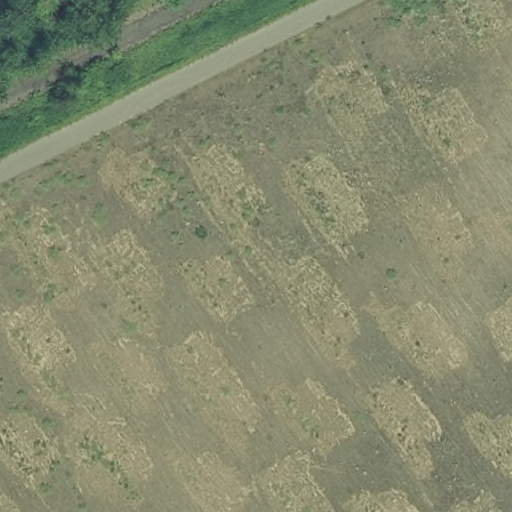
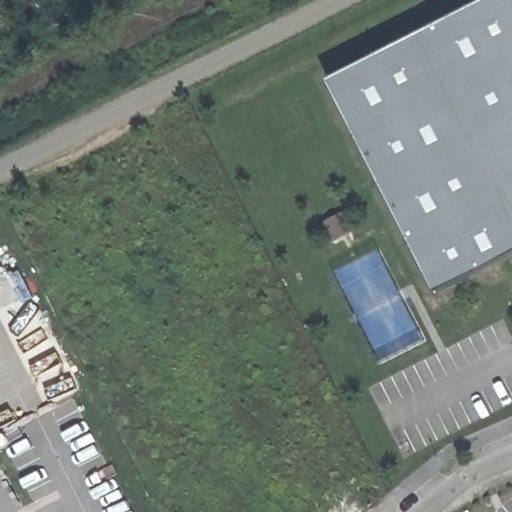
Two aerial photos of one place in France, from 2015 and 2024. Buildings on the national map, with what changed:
new [(512,0),(512,256),(473,275),(365,62),(486,0),(512,0)]
new [(365,62),(473,275),(437,294),(330,80),(365,62)]

